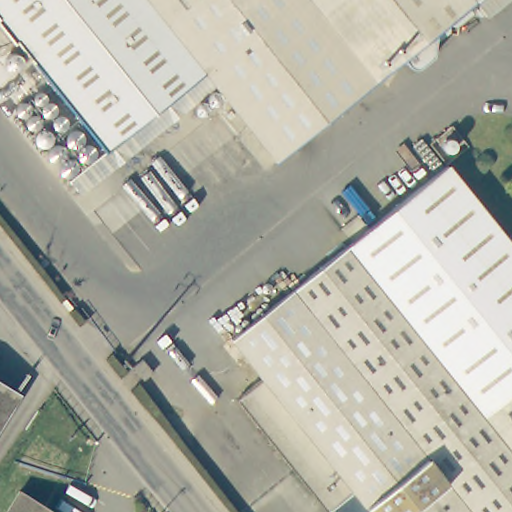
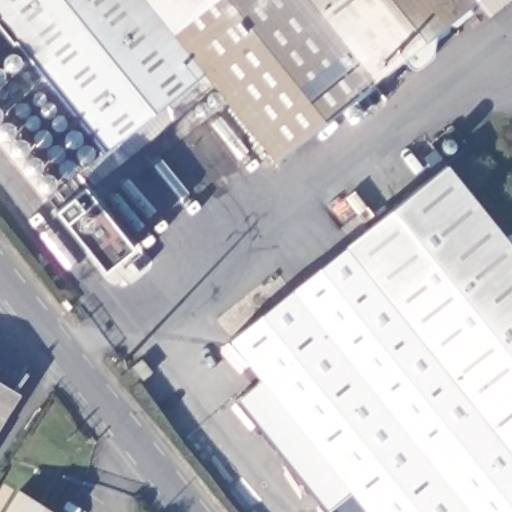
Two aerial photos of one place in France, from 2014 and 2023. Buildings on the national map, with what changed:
unchanged [(468,11),(453,23),(446,22),(445,30),(429,42),(429,53),(414,65),(413,65),(411,66),(408,65),(406,65),(404,62),(399,56),(271,157),(198,69),(101,147),(0,22),(0,0),(471,0),(469,2),(468,11)]
unchanged [(512,247),(512,512),(373,512),(265,380),(232,340),(447,167),(512,247)]
new [(134,246),(105,270),(56,209),(85,185),(134,246)]
unchanged [(239,401),(265,380),(373,512),(330,512),(239,401)]
unchanged [(0,385),(18,396),(0,426),(0,385)]
unchanged [(21,495),(48,512),(11,512),(21,495)]

